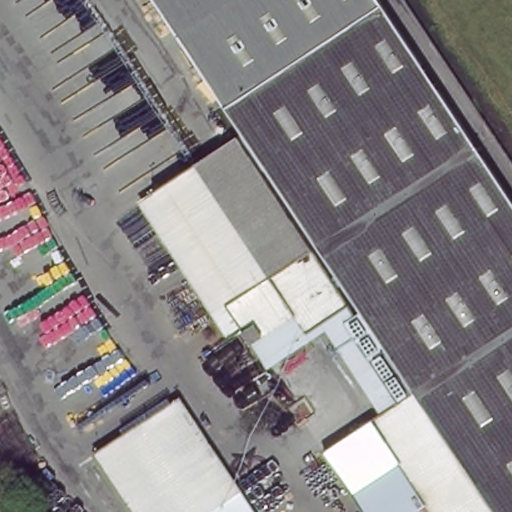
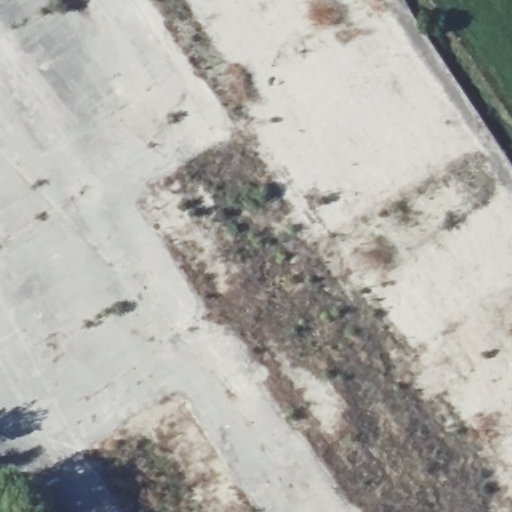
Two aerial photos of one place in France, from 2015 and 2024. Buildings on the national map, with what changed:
demolished [(358,512),(321,453),(374,412),(320,330),(263,365),(234,323),(221,331),(136,199),(241,129),(152,0),(381,0),(512,200),(512,512),(358,512)]
demolished [(177,393),(256,512),(130,512),(90,450),(177,393)]

